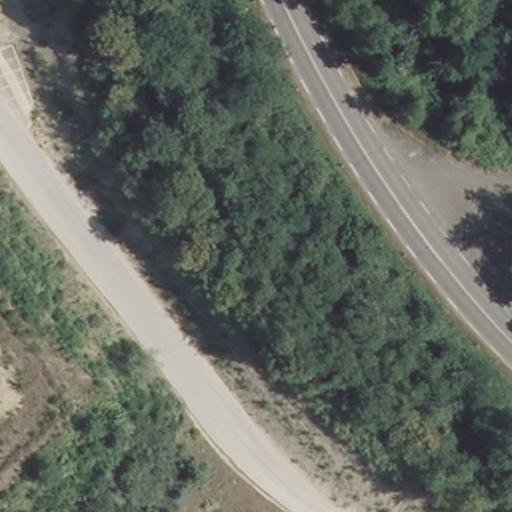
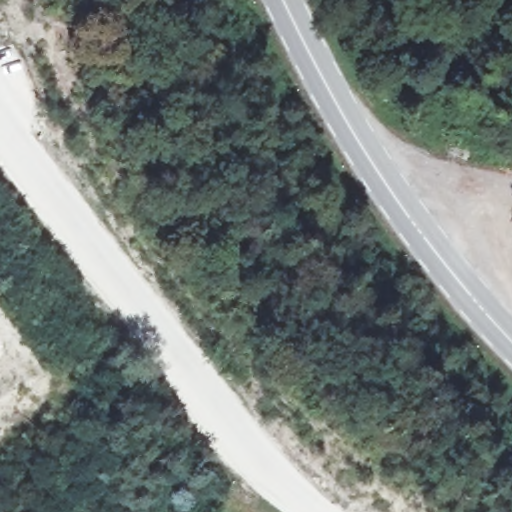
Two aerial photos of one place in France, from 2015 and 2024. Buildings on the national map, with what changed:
[]

